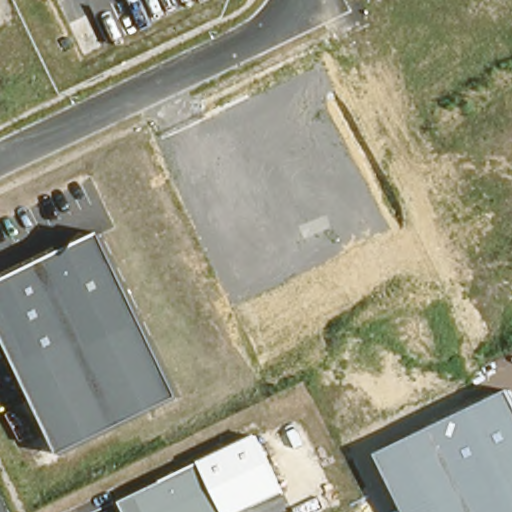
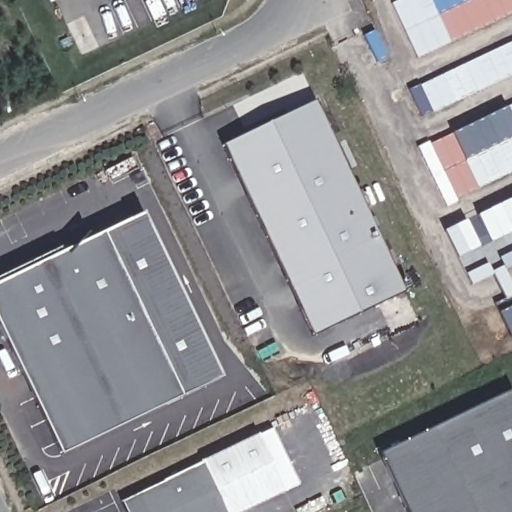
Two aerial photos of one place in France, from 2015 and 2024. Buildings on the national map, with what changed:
new [(512,14),(417,59),(391,5),(402,0),(512,0),(512,14)]
new [(409,91),(512,43),(512,75),(421,118),(409,91)]
new [(314,102),(404,293),(313,336),(224,146),(314,102)]
new [(512,106),(512,173),(446,204),(420,150),(512,106)]
new [(445,231),(467,220),(476,239),(485,234),(477,216),(512,199),(512,266),(503,270),(471,286),(445,231)]
new [(142,216),(220,377),(181,397),(104,233),(142,216)]
unchanged [(0,327),(0,283),(104,233),(181,397),(61,455),(0,327)]
unchanged [(512,391),(512,512),(407,512),(380,454),(511,390),(512,391)]
unchanged [(202,462),(259,435),(285,491),(242,512),(126,512),(121,502),(202,462)]

